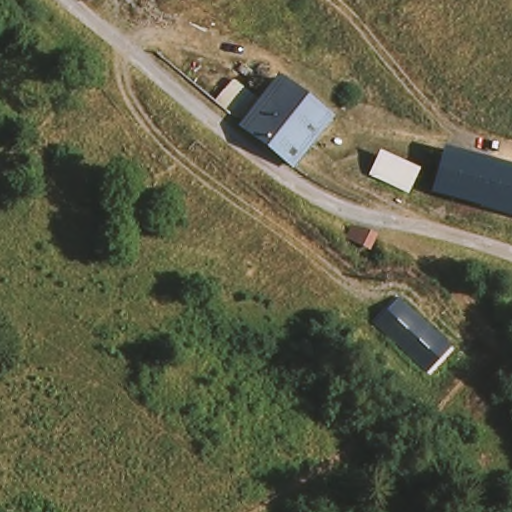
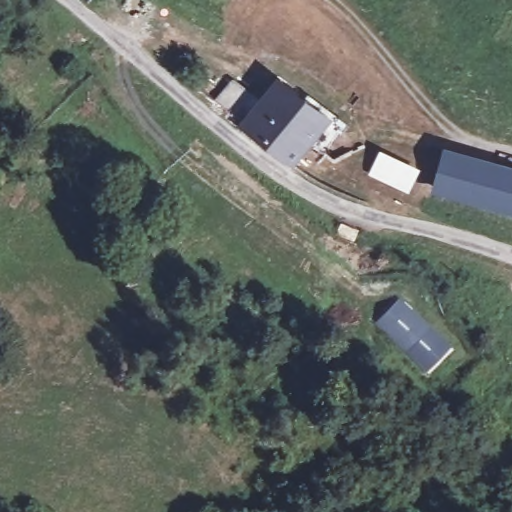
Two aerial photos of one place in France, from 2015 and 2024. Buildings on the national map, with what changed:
unchanged [(285,81),(335,120),(293,171),(241,129),(285,81)]
unchanged [(408,197),(364,174),(377,145),(422,167),(408,197)]
unchanged [(442,149),(512,168),(512,215),(429,194),(442,149)]
unchanged [(369,258),(339,247),(348,225),(377,237),(369,258)]
unchanged [(389,263),(405,276),(399,283),(384,271),(389,263)]
unchanged [(425,376),(370,326),(397,297),(451,348),(425,376)]

